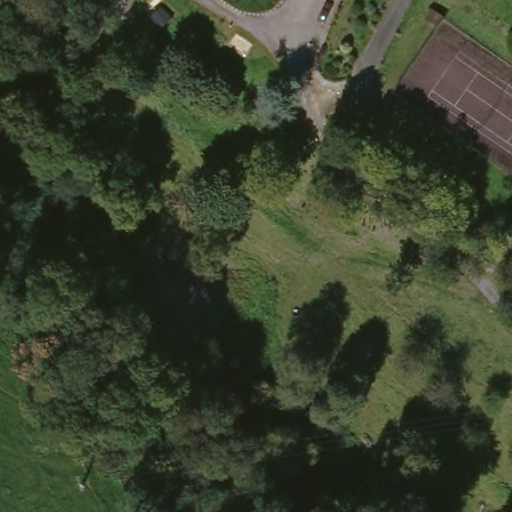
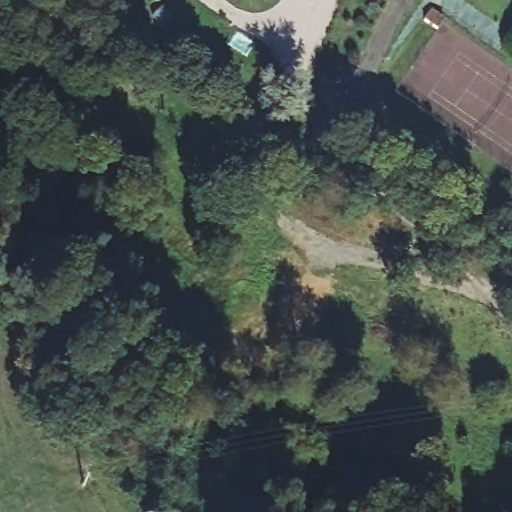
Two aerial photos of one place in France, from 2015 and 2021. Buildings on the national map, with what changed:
unchanged [(433,23),(421,15),(427,4),(440,12),(433,23)]

